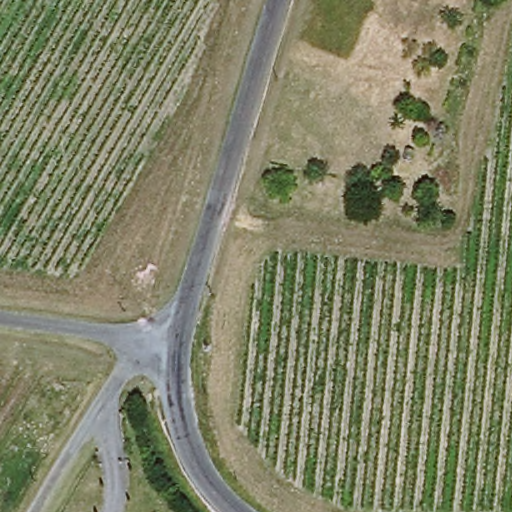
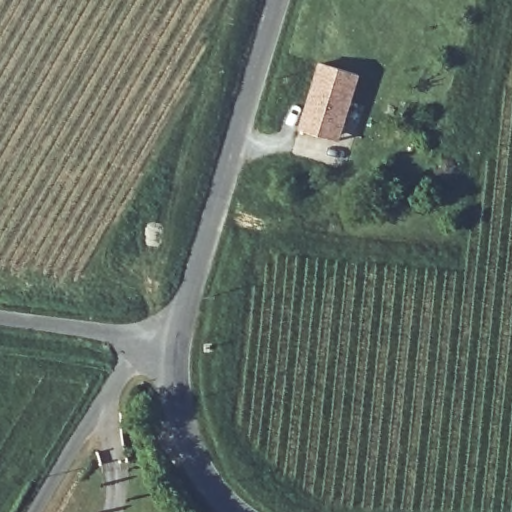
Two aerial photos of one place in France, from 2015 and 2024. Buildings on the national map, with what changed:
new [(329,139),(302,131),(324,64),(361,76),(345,127),(340,143),(329,139)]

